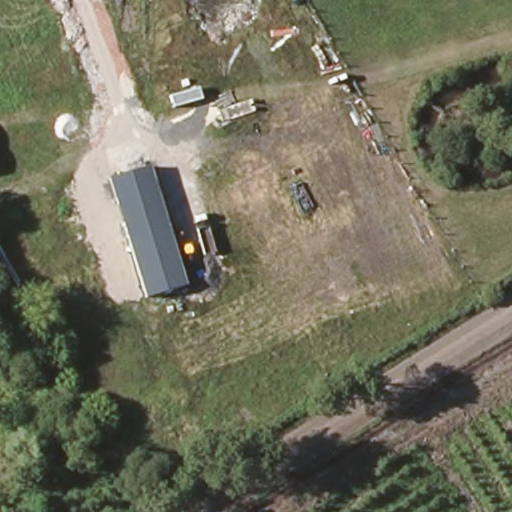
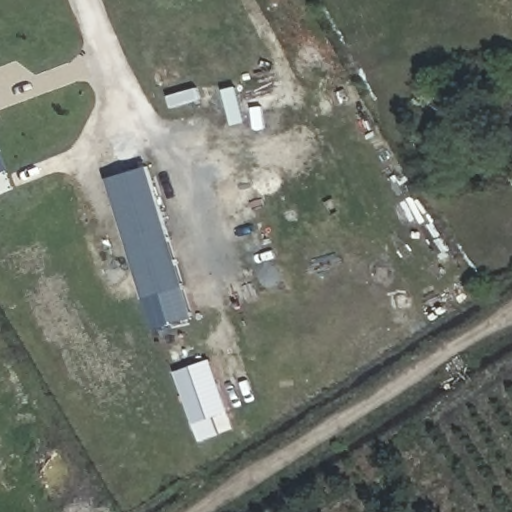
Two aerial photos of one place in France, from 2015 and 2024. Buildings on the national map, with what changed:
unchanged [(148,172),(151,182),(190,315),(151,328),(144,298),(115,202),(110,183),(148,172)]
new [(227,412),(194,424),(175,371),(210,360),(227,412)]

